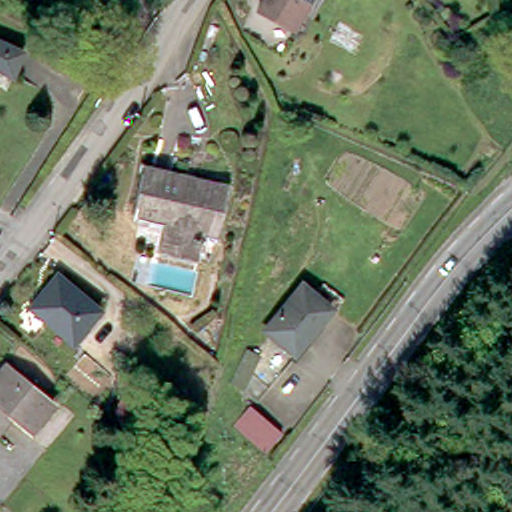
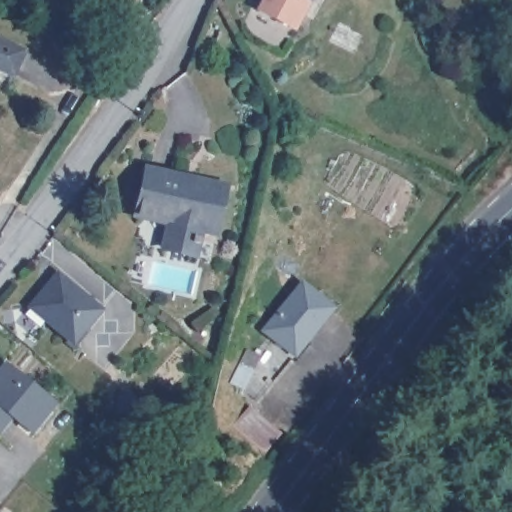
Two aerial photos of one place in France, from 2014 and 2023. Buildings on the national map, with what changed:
unchanged [(252,7),(256,0),(304,0),(288,29),(252,7)]
unchanged [(21,51),(12,74),(0,69),(0,41),(21,51)]
unchanged [(192,217),(191,220),(194,221),(192,231),(188,231),(187,238),(158,232),(163,205),(131,197),(140,160),(182,170),(185,164),(218,171),(209,215),(208,220),(192,217)]
unchanged [(98,310),(71,340),(29,306),(57,275),(98,310)]
unchanged [(263,331),(300,280),(338,302),(298,353),(263,331)]
unchanged [(12,411),(0,426),(0,366),(4,360),(53,400),(38,417),(32,426),(12,411)]
unchanged [(282,432),(265,452),(233,427),(250,406),(282,432)]

